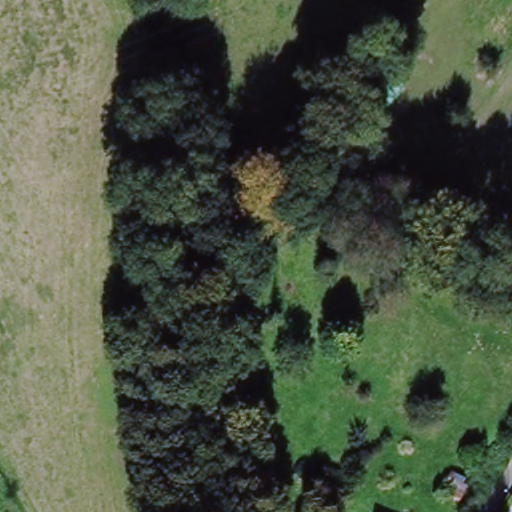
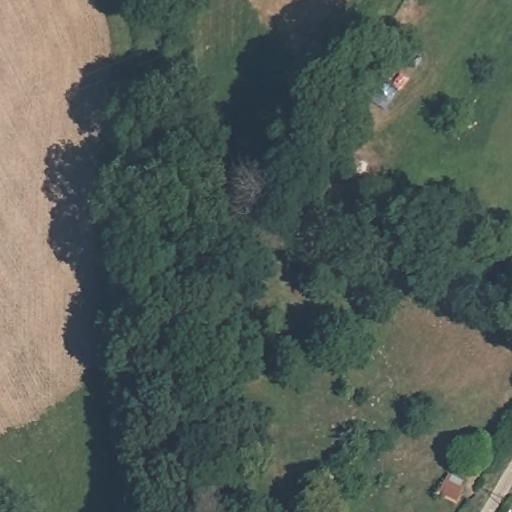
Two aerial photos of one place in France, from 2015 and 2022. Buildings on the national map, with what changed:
unchanged [(460,507),(439,496),(450,468),(474,476),(460,507)]

